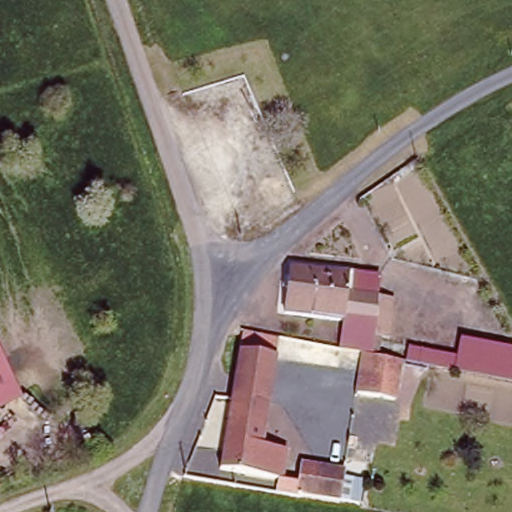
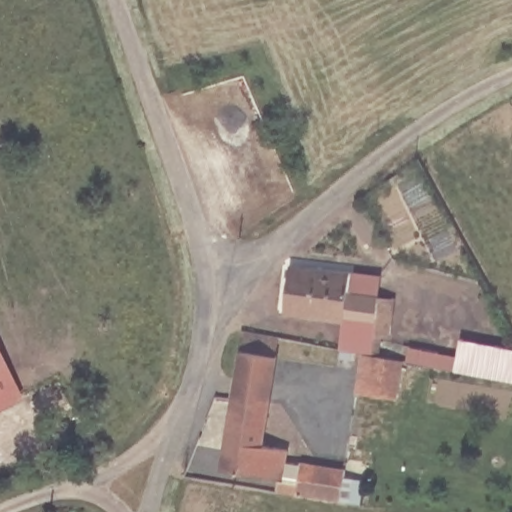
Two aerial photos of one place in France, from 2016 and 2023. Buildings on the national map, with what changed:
unchanged [(390,330),(381,329),(379,344),(370,342),(340,337),(343,309),(285,300),(290,256),(382,270),(378,287),(395,289),(390,330)]
unchanged [(512,342),(512,374),(407,357),(410,341),(460,349),(462,335),(512,342)]
unchanged [(0,399),(0,344),(23,386),(0,399)]
unchanged [(283,347),(267,444),(292,446),(286,474),(300,476),(306,456),(351,464),(343,499),(275,490),(280,479),(218,467),(242,344),(283,347)]
unchanged [(359,356),(402,363),(395,398),(355,390),(359,356)]

